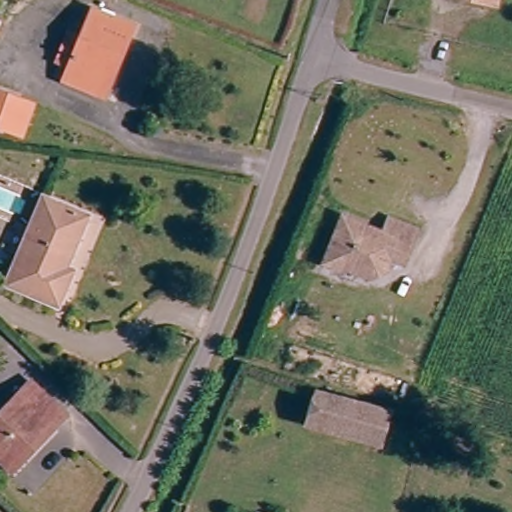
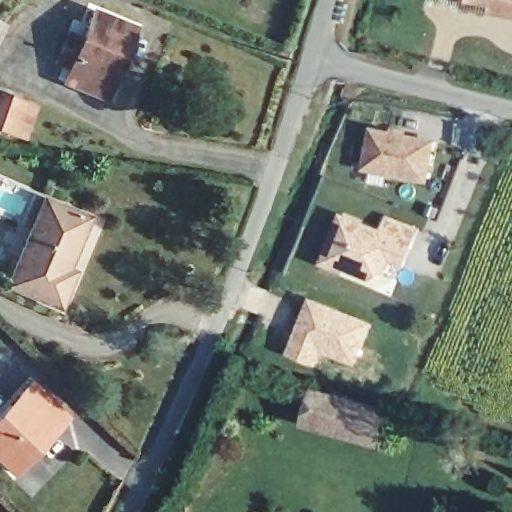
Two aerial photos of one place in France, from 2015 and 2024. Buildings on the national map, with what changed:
demolished [(471,0),(500,0),(499,5),(471,0)]
unchanged [(496,11),(498,2),(485,0),(512,0),(512,15),(496,11)]
unchanged [(114,83),(73,67),(56,61),(68,30),(84,37),(94,11),(135,27),(127,47),(120,68),(114,83)]
unchanged [(23,129),(0,121),(0,91),(31,102),(23,129)]
new [(372,148),(375,130),(435,141),(428,178),(413,175),(412,180),(393,176),(391,184),(370,180),(371,172),(362,170),(363,166),(356,165),(360,145),(372,148)]
unchanged [(7,283),(41,204),(81,220),(61,272),(71,277),(60,304),(7,283)]
unchanged [(391,257),(386,270),(371,276),(345,266),(343,269),(324,261),(343,214),(384,231),(390,216),(420,228),(412,247),(405,263),(391,257)]
new [(310,297),(373,321),(356,367),(324,354),(319,367),(287,355),(310,297)]
unchanged [(0,417),(34,384),(70,419),(18,472),(0,455),(0,417)]
unchanged [(390,414),(381,443),(307,419),(315,392),(390,414)]

